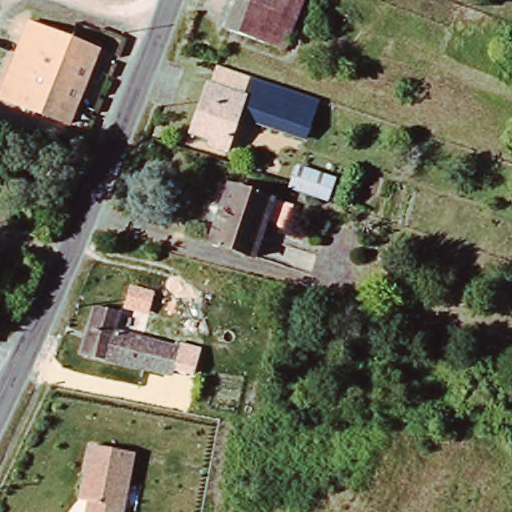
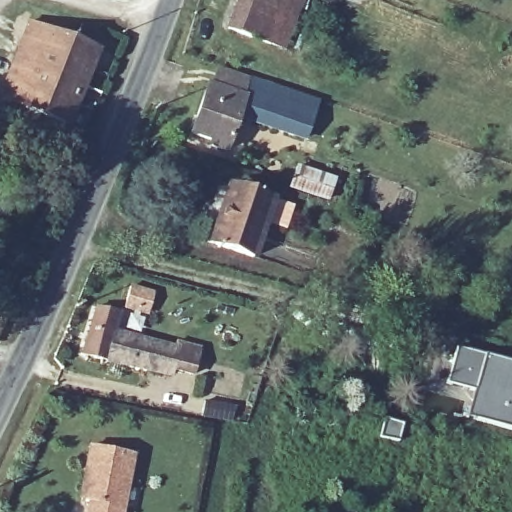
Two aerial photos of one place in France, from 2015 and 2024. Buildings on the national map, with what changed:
unchanged [(228,26),(238,0),(303,0),(286,48),(228,26)]
unchanged [(97,46),(79,97),(11,72),(30,20),(97,46)]
unchanged [(323,101),(307,141),(286,135),(240,118),(248,97),(212,84),(220,66),(323,101)]
unchanged [(11,72),(79,97),(70,122),(2,96),(11,72)]
unchanged [(248,97),(240,118),(230,148),(214,143),(212,136),(195,130),(212,84),(248,97)]
new [(296,166),(335,179),(328,198),(290,186),(296,166)]
unchanged [(267,223),(259,250),(215,239),(230,188),(293,202),(286,228),(267,223)]
unchanged [(126,299),(141,301),(140,317),(124,315),(126,299)]
unchanged [(179,375),(179,377),(165,374),(81,360),(82,357),(97,314),(120,320),(119,339),(170,348),(185,351),(179,375)]
new [(446,383),(456,348),(512,364),(512,431),(475,420),(466,418),(473,391),(446,383)]
unchanged [(86,471),(91,443),(132,450),(121,512),(88,512),(90,499),(87,499),(82,498),(86,471)]

